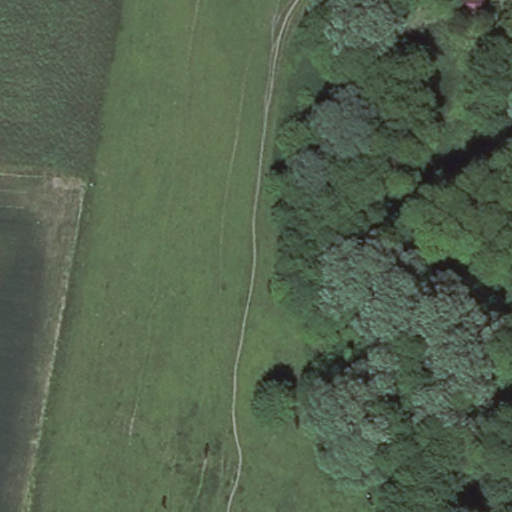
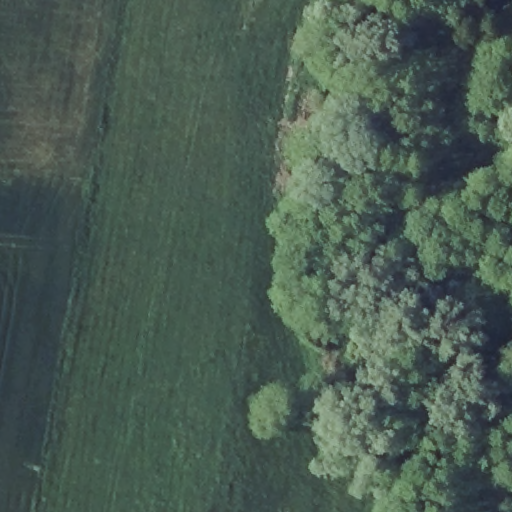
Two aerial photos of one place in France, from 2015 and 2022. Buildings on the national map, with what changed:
unchanged [(446,22),(447,0),(485,0),(484,23),(446,22)]

